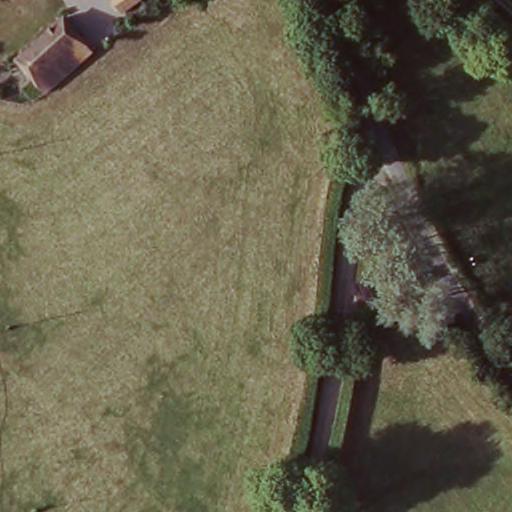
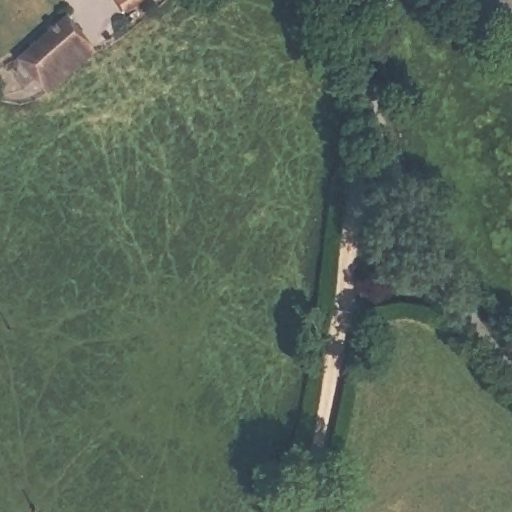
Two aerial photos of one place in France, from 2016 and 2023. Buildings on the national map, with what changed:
unchanged [(103,0),(130,0),(113,12),(103,0)]
unchanged [(10,66),(63,24),(90,59),(38,100),(10,66)]

